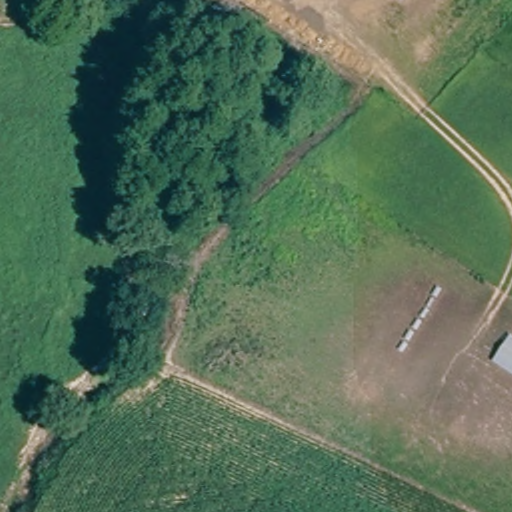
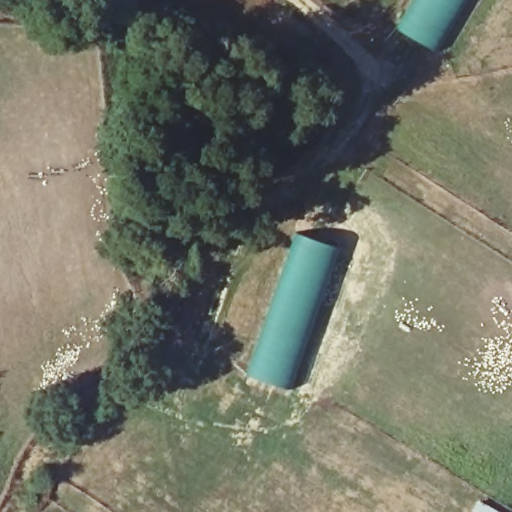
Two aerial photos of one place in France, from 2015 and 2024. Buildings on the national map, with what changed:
new [(422,0),(467,0),(431,51),(405,34),(422,0)]
new [(295,232),(340,249),(327,293),(292,390),(246,375),(295,232)]

